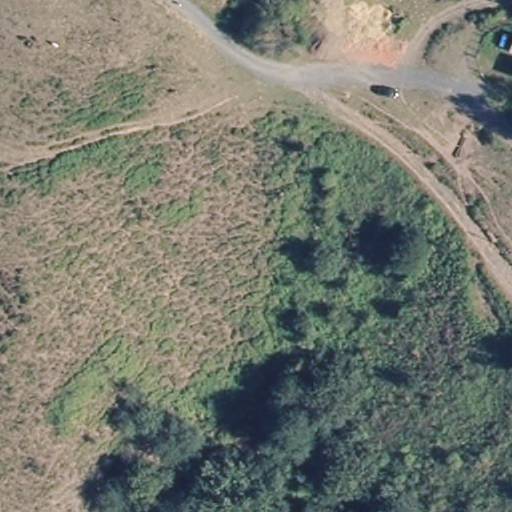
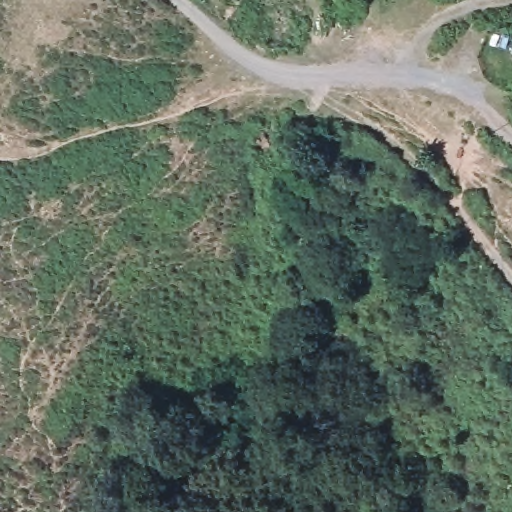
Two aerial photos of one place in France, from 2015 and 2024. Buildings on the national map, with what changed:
unchanged [(510,52),(512,47),(512,52),(510,52)]

